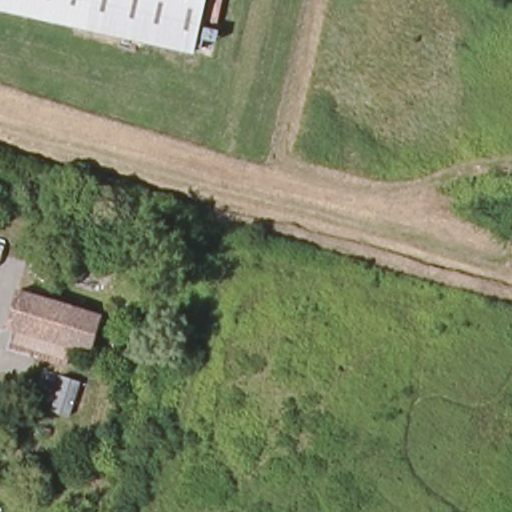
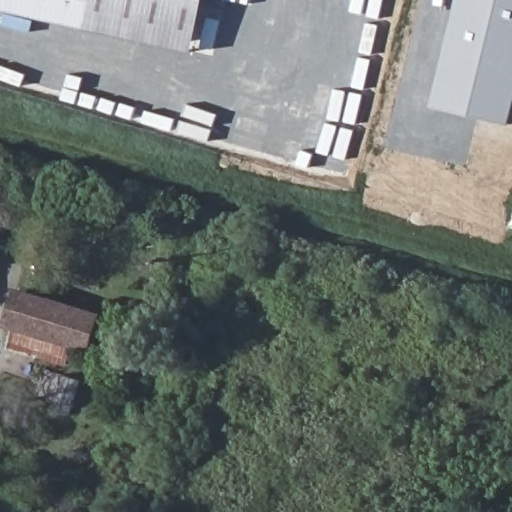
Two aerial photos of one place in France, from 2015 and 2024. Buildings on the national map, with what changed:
unchanged [(0,0),(91,0),(85,23),(0,2),(0,0)]
unchanged [(188,48),(85,23),(91,0),(200,0),(188,48)]
new [(509,125),(431,105),(456,0),(512,0),(512,113),(509,125)]
unchanged [(14,322),(24,292),(105,316),(95,347),(77,342),(21,325),(14,322)]
unchanged [(72,364),(14,345),(21,325),(77,342),(72,364)]

